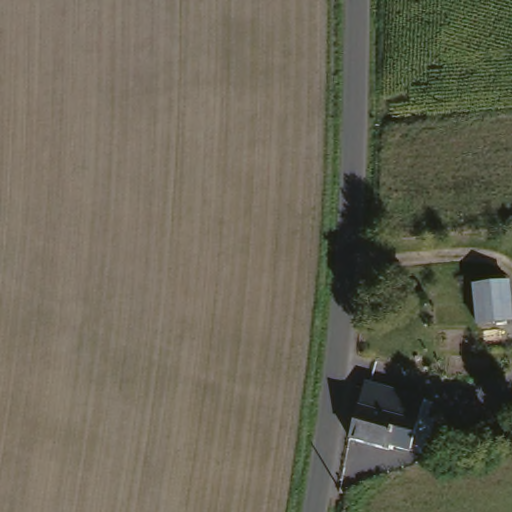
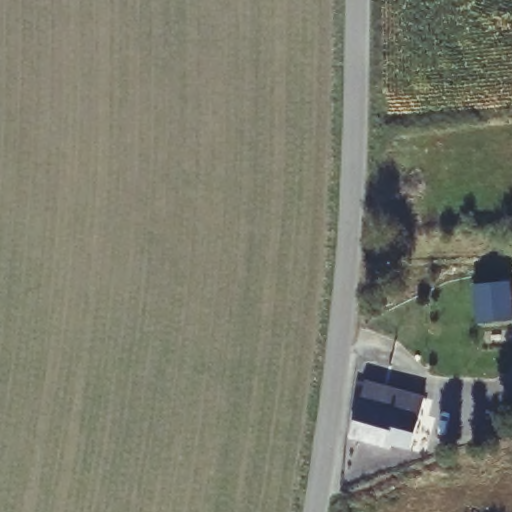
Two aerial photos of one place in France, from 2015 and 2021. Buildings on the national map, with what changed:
unchanged [(505,288),(510,326),(482,328),(478,291),(505,288)]
unchanged [(360,373),(417,394),(411,416),(400,448),(379,440),(377,443),(340,429),(360,373)]

